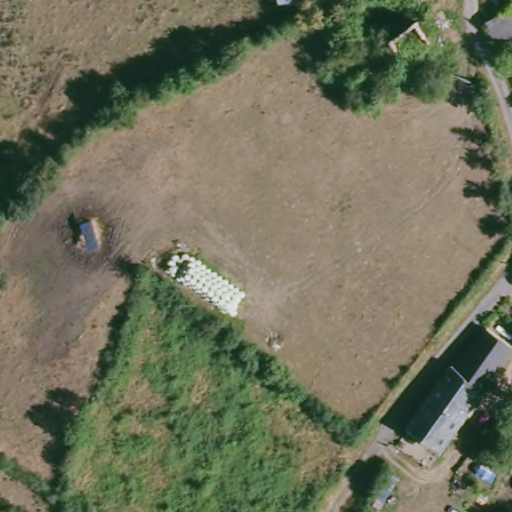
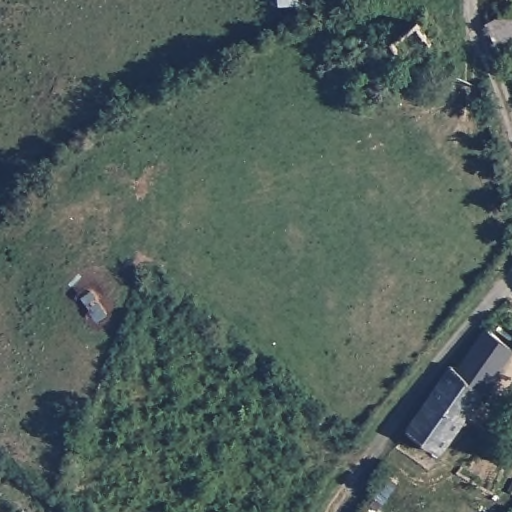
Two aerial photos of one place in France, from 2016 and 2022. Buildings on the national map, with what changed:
unchanged [(512,50),(504,55),(486,24),(512,9),(512,50)]
unchanged [(489,326),(512,343),(512,350),(487,387),(444,453),(409,430),(454,364),(460,368),(489,326)]

